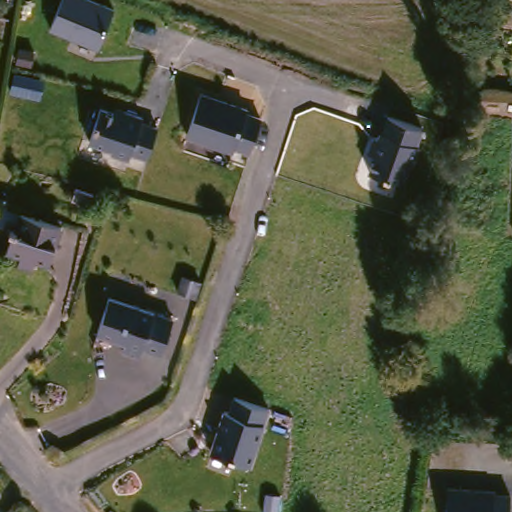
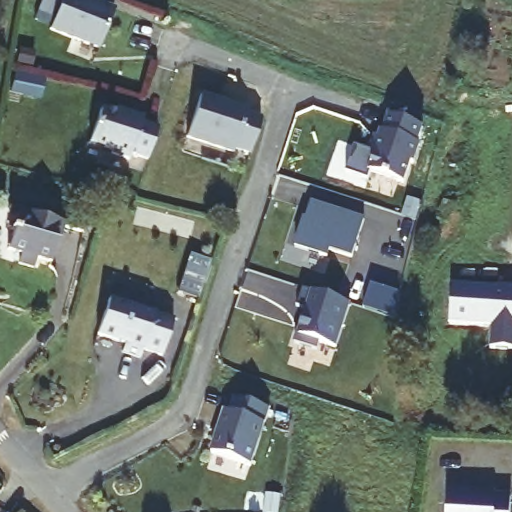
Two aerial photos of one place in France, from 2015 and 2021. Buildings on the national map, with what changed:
unchanged [(71,0),(72,0),(116,29),(93,63),(49,35),(71,0)]
unchanged [(234,146),(188,132),(200,90),(247,104),(246,108),(261,113),(253,138),(251,147),(235,142),(234,146)]
unchanged [(149,159),(132,154),(130,159),(92,146),(103,107),(158,126),(149,159)]
unchanged [(406,185),(370,171),(374,161),(366,157),(374,135),(381,137),(388,116),(423,125),(406,185)]
new [(304,215),(307,215),(312,197),(365,214),(353,252),(330,245),(328,252),(296,242),(304,215)]
unchanged [(54,225),(43,274),(14,267),(17,255),(6,252),(14,216),(54,225)]
unchanged [(194,280),(191,294),(173,290),(176,275),(194,280)]
new [(419,311),(399,305),(384,300),(390,280),(406,285),(423,290),(419,311)]
new [(451,285),(512,288),(512,348),(491,347),(492,326),(449,323),(451,285)]
new [(313,312),(303,310),(309,292),(358,307),(344,351),(328,346),(326,354),(302,347),(313,312)]
unchanged [(102,300),(166,320),(156,353),(137,347),(134,357),(116,352),(119,343),(91,334),(102,300)]
unchanged [(251,466),(209,452),(224,408),(229,410),(234,397),(271,410),(251,466)]
unchanged [(512,512),(449,512),(450,490),(498,492),(512,496),(512,510),(512,512)]

